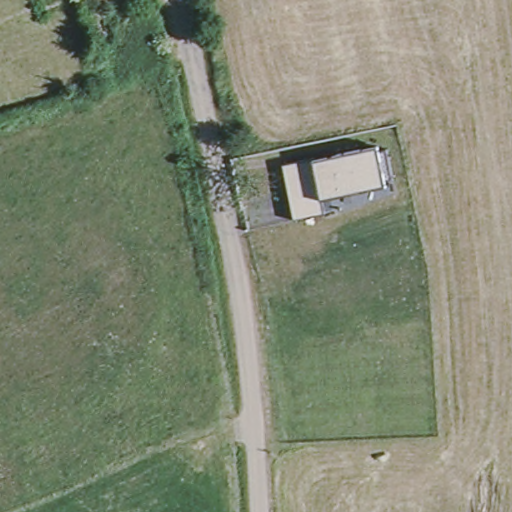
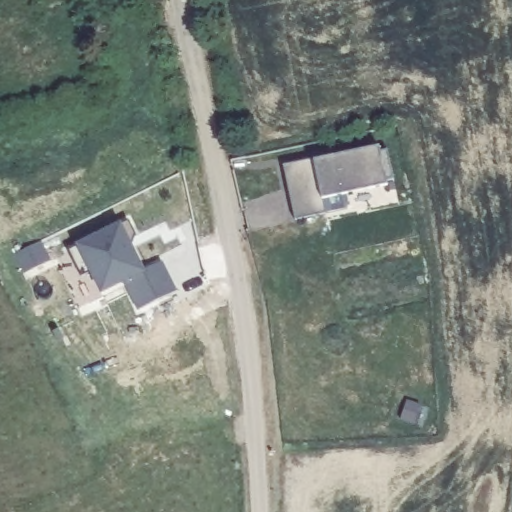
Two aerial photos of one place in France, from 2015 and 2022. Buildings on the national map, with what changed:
unchanged [(283,166),(313,161),(376,150),(384,184),(323,197),(324,212),(293,219),(283,166)]
new [(88,273),(80,277),(67,250),(75,246),(121,225),(143,272),(163,262),(176,292),(136,310),(123,285),(99,297),(88,273)]
new [(51,261),(21,275),(14,258),(41,241),(51,261)]
new [(422,406),(416,425),(400,420),(406,401),(422,406)]

